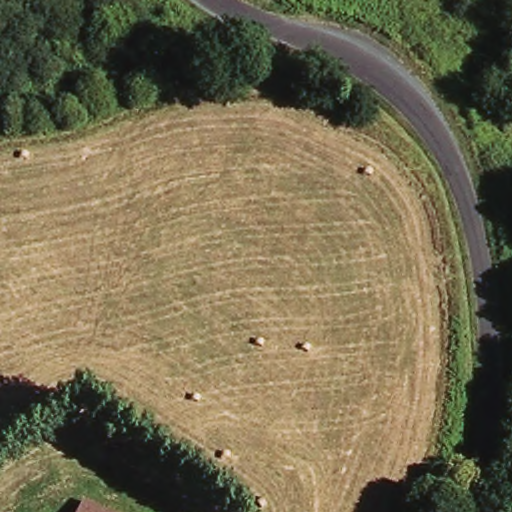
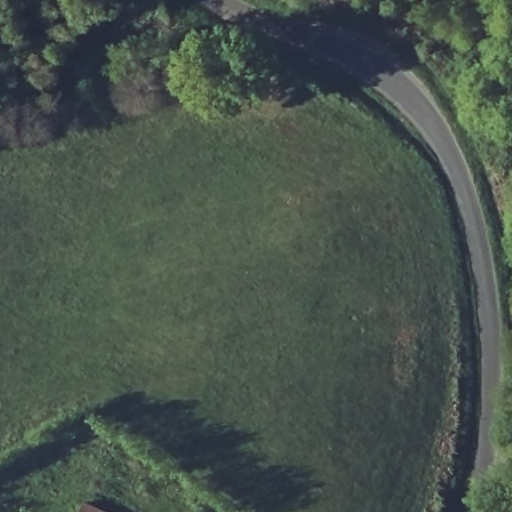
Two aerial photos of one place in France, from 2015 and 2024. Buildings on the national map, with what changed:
unchanged [(96,512),(77,512),(80,505),(96,512)]

